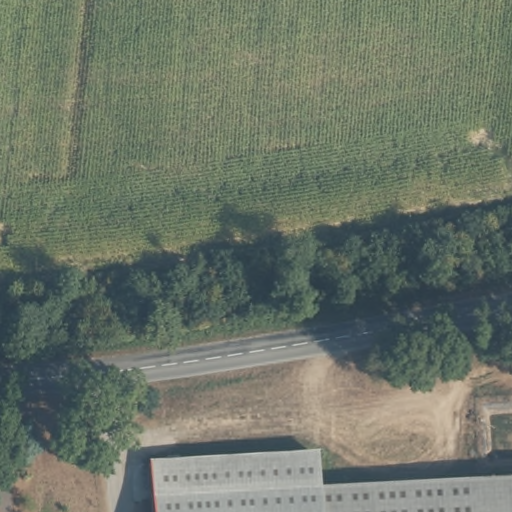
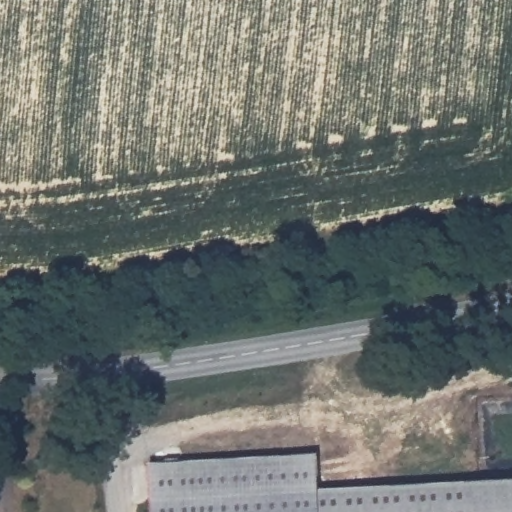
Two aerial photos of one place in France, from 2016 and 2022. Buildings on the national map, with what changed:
unchanged [(151,499),(149,463),(166,462),(166,456),(179,456),(179,461),(315,453),(317,489),(151,499)]
unchanged [(512,479),(512,512),(318,512),(317,489),(512,479)]
unchanged [(317,489),(318,512),(152,512),(151,499),(317,489)]

